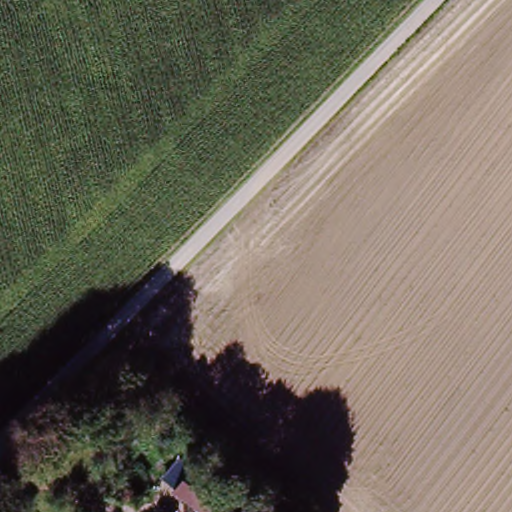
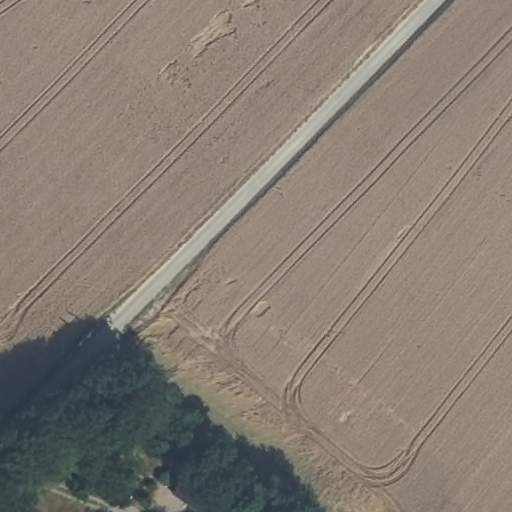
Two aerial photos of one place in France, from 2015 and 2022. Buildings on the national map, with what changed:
unchanged [(44,445),(71,410),(86,424),(60,458),(44,445)]
unchanged [(184,466),(218,495),(230,481),(245,495),(233,508),(237,512),(202,512),(169,484),(184,466)]
unchanged [(14,512),(0,512),(0,493),(9,482),(27,496),(14,512)]

